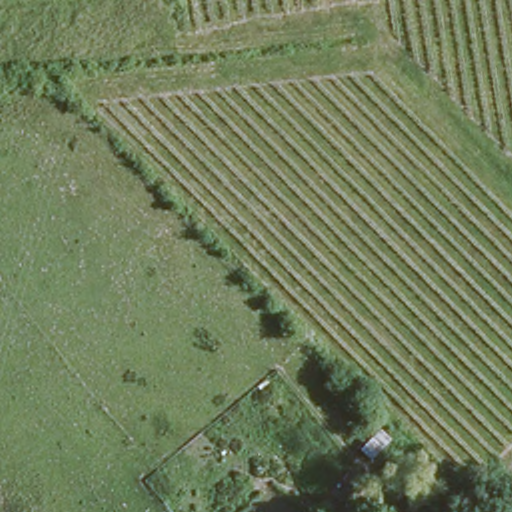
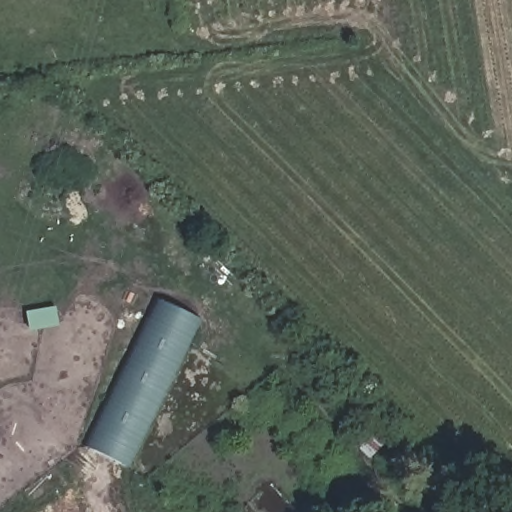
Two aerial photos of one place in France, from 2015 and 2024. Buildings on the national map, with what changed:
new [(86,445),(157,298),(201,321),(130,468),(86,445)]

